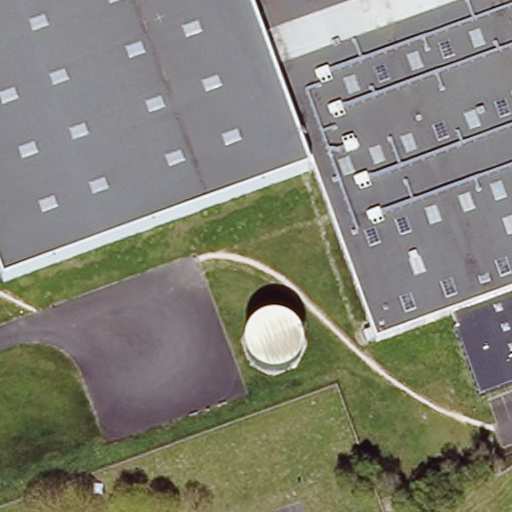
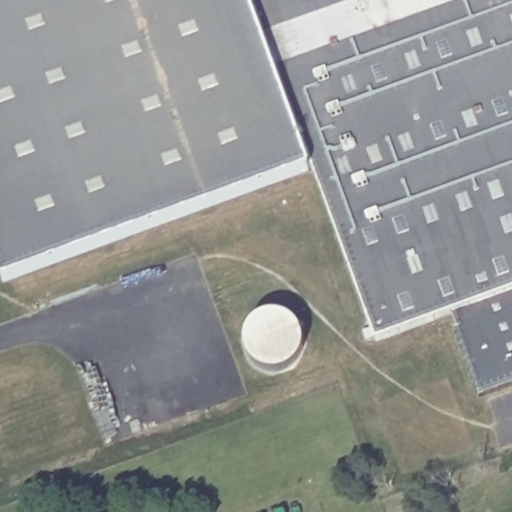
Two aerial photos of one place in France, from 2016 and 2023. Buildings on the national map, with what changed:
unchanged [(0,278),(0,0),(255,0),(314,160),(2,284),(0,278)]
unchanged [(484,397),(456,314),(380,341),(314,160),(255,0),(512,0),(512,387),(484,397)]
unchanged [(245,339),(251,318),(269,310),(291,312),(305,327),(308,349),(296,370),(274,373),(249,358),(245,339)]

